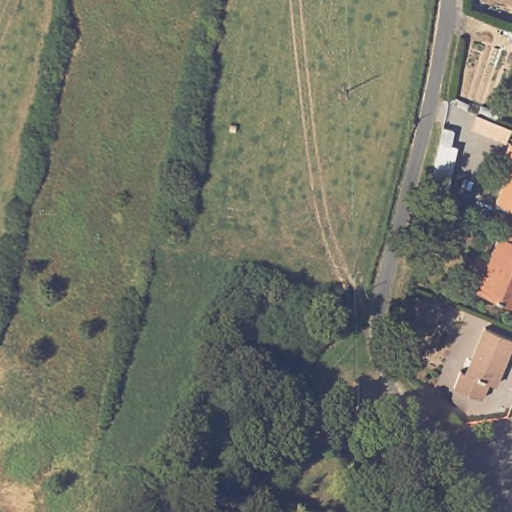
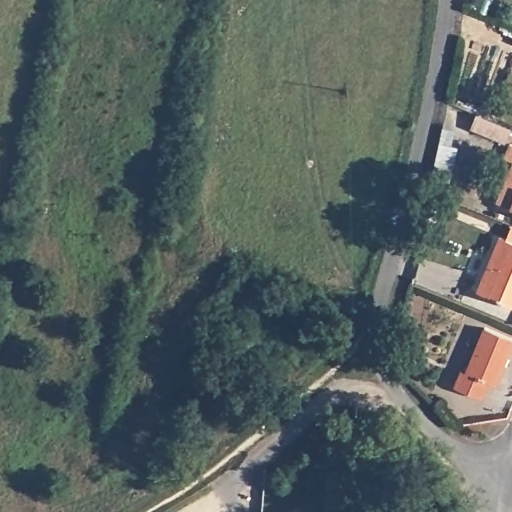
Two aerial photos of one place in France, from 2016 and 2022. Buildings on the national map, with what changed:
unchanged [(512,132),(506,147),(470,132),(476,117),(512,132)]
unchanged [(455,131),(451,146),(457,147),(447,196),(430,188),(443,128),(455,131)]
unchanged [(505,162),(511,148),(512,148),(512,165),(505,162)]
unchanged [(512,174),(512,213),(510,212),(497,207),(512,174)]
unchanged [(476,291),(499,236),(505,238),(511,226),(512,226),(512,306),(476,291)]
unchanged [(495,383),(488,380),(482,396),(454,385),(460,370),(466,372),(485,327),(512,339),(512,343),(495,383)]

